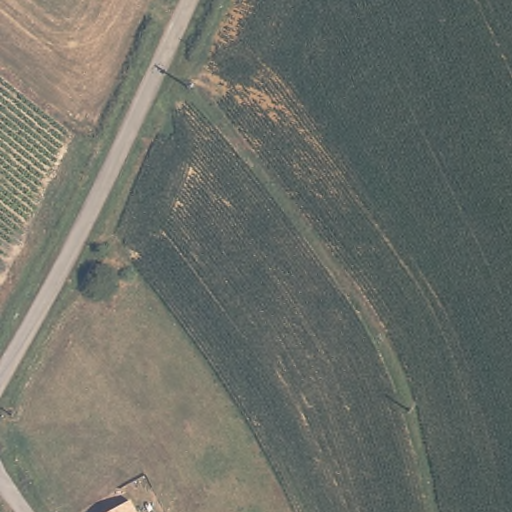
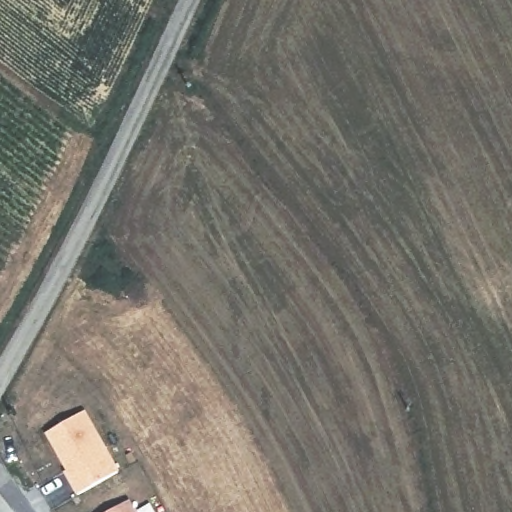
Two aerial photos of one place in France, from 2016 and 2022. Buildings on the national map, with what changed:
new [(63,473),(66,471),(45,433),(85,411),(117,471),(76,495),(63,473)]
unchanged [(109,512),(130,500),(137,512),(109,512)]

